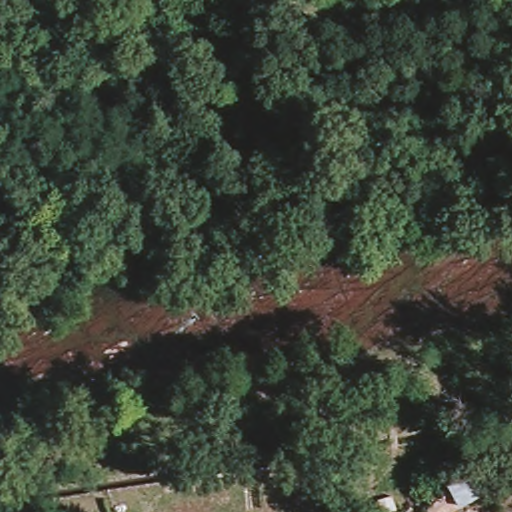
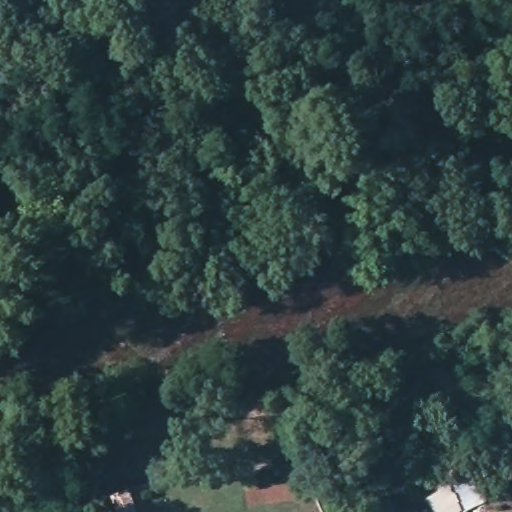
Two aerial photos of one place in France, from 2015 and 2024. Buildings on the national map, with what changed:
[]

